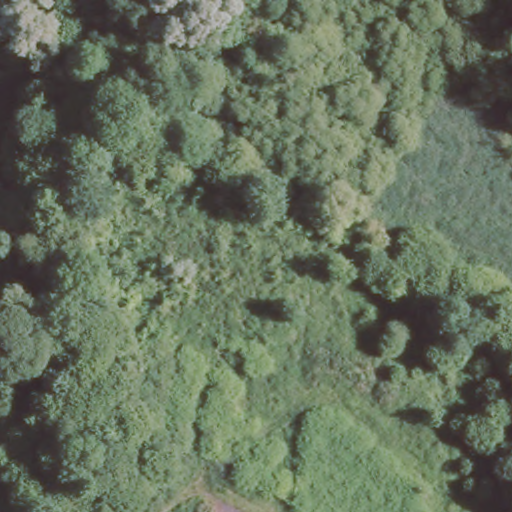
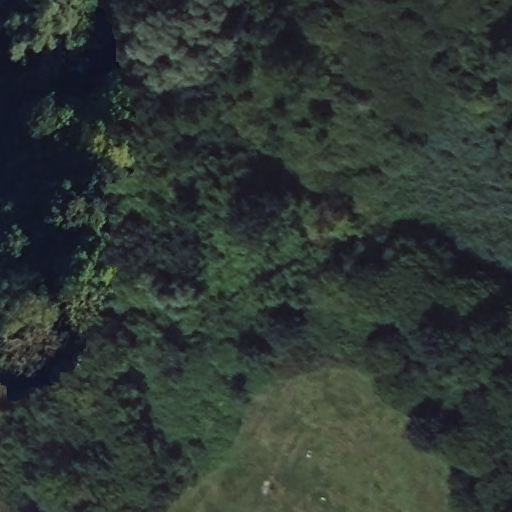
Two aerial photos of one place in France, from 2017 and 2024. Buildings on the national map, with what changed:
[]

